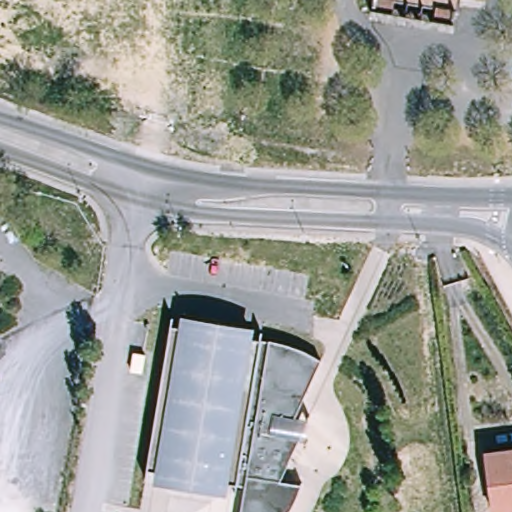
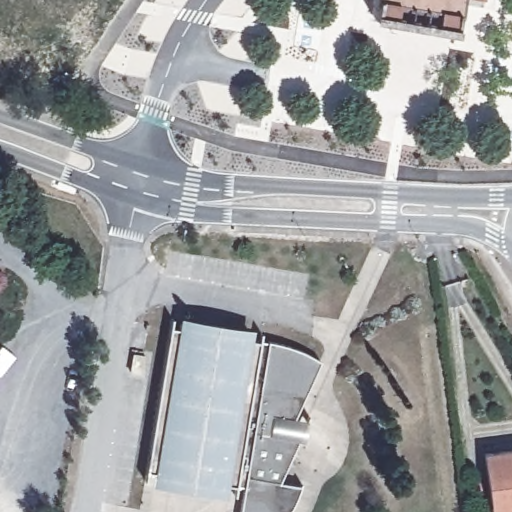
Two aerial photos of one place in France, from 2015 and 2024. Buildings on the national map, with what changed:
unchanged [(462,11),(458,28),(378,15),(379,5),(378,4),(378,0),(466,0),(464,11),(462,11)]
unchanged [(235,484),(235,487),(163,476),(162,473),(154,472),(159,437),(166,386),(173,336),(174,327),(183,328),(184,324),(256,335),(256,338),(278,341),(297,348),(316,356),(320,358),(298,418),(284,416),(282,435),(305,440),(287,481),(308,484),(303,497),(296,508),(294,512),(248,512),(251,487),(235,484)]
unchanged [(484,454),(512,450),(512,512),(491,512),(490,502),(484,454)]

